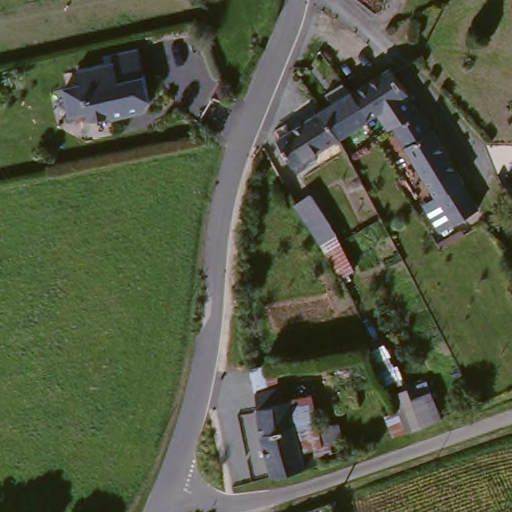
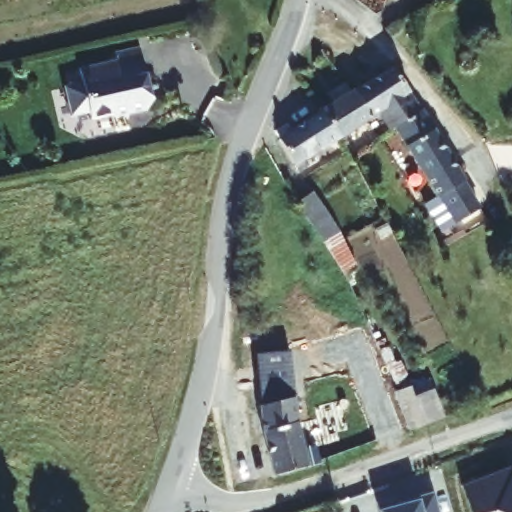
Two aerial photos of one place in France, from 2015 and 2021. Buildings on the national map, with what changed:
unchanged [(154,109),(146,111),(145,107),(137,109),(137,113),(121,116),(120,113),(100,118),(97,110),(82,113),(76,87),(92,83),(89,69),(127,60),(127,57),(148,52),(152,71),(158,96),(154,109)]
unchanged [(396,68),(415,92),(427,110),(398,127),(396,129),(386,112),(376,118),(357,92),(383,76),(376,64),(387,57),(396,68)]
unchanged [(357,92),(376,118),(345,138),(327,110),(357,92)]
unchanged [(309,162),(312,167),(303,173),(283,140),(279,131),(292,124),(296,131),(327,110),(345,138),(309,162)]
unchanged [(427,110),(470,181),(487,208),(448,228),(434,203),(442,198),(398,127),(427,110)]
unchanged [(311,195),(312,194),(337,233),(322,243),(297,205),(311,195)]
unchanged [(262,362),(284,356),(290,379),(294,394),(303,392),(313,444),(325,442),(330,458),(317,462),(283,471),(272,426),(267,386),(262,362)]
unchanged [(323,387),(333,440),(325,442),(313,444),(303,392),(323,387)]
unchanged [(423,425),(412,397),(432,390),(443,418),(423,425)]
new [(495,511),(492,512),(471,512),(461,486),(512,467),(512,512),(497,512),(495,511)]
new [(393,500),(396,508),(417,502),(416,499),(432,495),(437,512),(379,512),(377,504),(393,500)]

